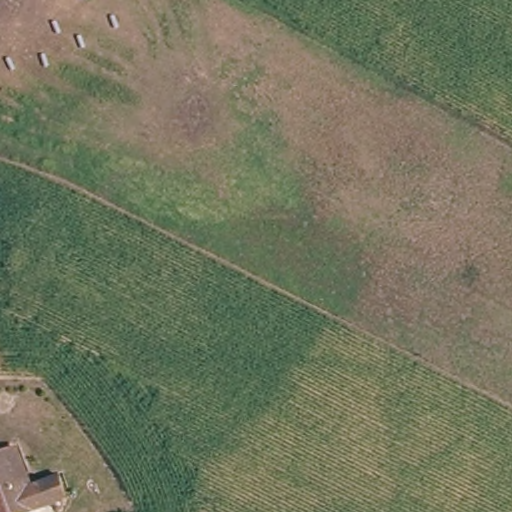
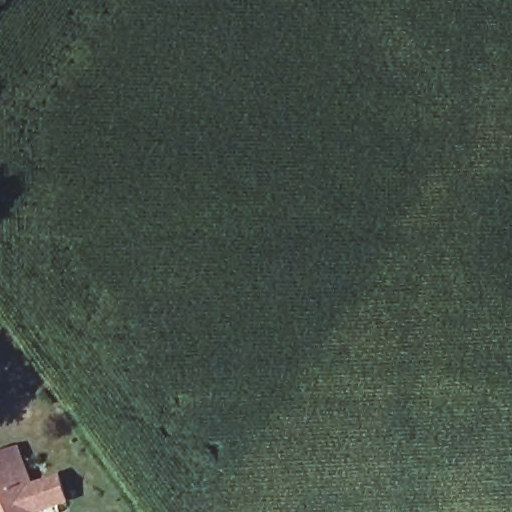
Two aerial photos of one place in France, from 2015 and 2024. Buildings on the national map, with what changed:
unchanged [(52,476),(61,497),(20,512),(0,512),(0,448),(6,446),(25,486),(52,476)]

